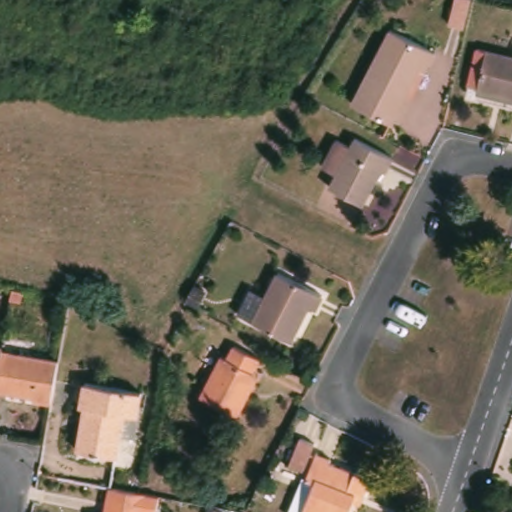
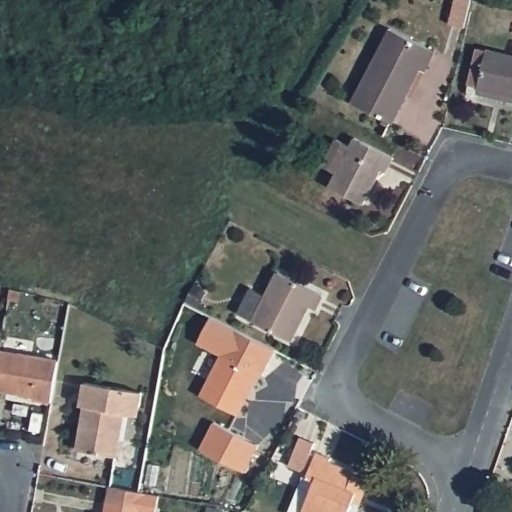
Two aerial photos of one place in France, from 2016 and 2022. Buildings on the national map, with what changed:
unchanged [(413,101),(407,100),(392,129),(351,103),(388,32),(434,57),(413,101)]
unchanged [(484,54),(512,59),(512,104),(474,96),(484,54)]
unchanged [(389,177),(383,176),(368,208),(326,188),(332,176),(321,171),(334,139),(347,148),(351,141),(394,164),(389,177)]
unchanged [(312,313),(305,312),(295,343),(252,321),(275,278),(318,297),(312,313)]
new [(211,318),(275,350),(263,376),(255,372),(260,361),(230,349),(226,358),(198,344),(211,318)]
unchanged [(1,348),(0,352),(0,348),(1,348)]
unchanged [(254,374),(258,377),(241,417),(201,401),(215,357),(224,361),(230,349),(260,361),(254,374)]
unchanged [(57,364),(50,408),(33,406),(33,399),(0,394),(0,352),(57,364)]
unchanged [(138,417),(125,416),(117,459),(78,452),(82,412),(78,411),(82,388),(142,395),(138,417)]
new [(202,448),(214,422),(259,447),(246,471),(202,448)]
unchanged [(312,445),(311,455),(330,460),(330,463),(371,480),(362,510),(351,507),(350,512),(289,512),(300,476),(289,471),(299,443),(312,445)]
unchanged [(156,512),(104,512),(108,491),(157,498),(156,512)]

